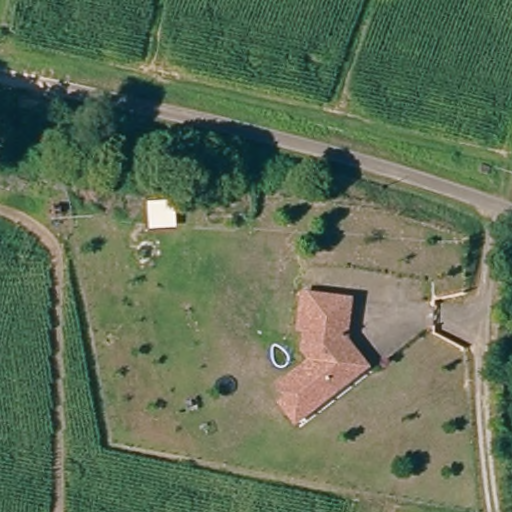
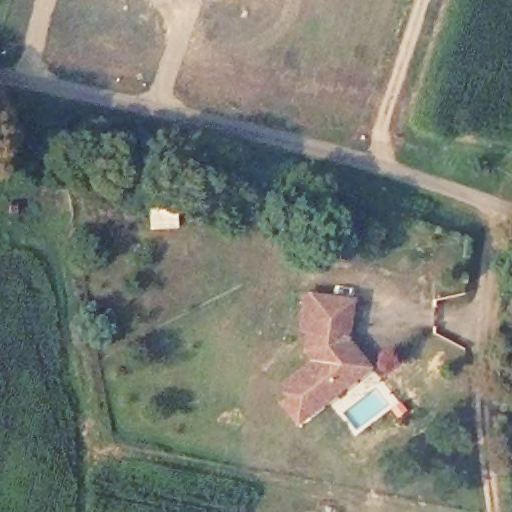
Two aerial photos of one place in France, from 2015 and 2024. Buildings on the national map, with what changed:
unchanged [(355,300),(351,339),(372,366),(361,375),(301,422),(285,403),(292,398),(283,386),(316,361),(308,351),(310,330),(304,329),(308,294),(322,296),(355,300)]

